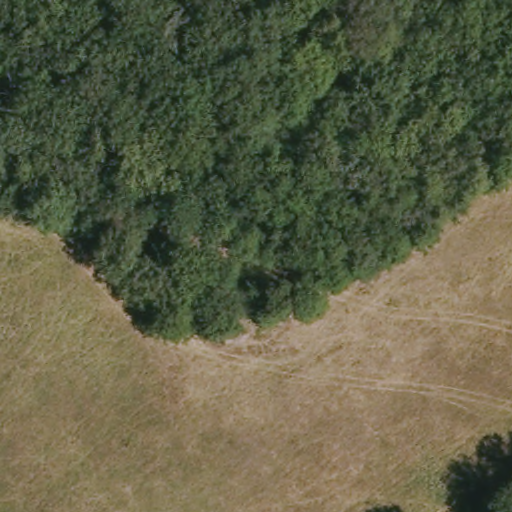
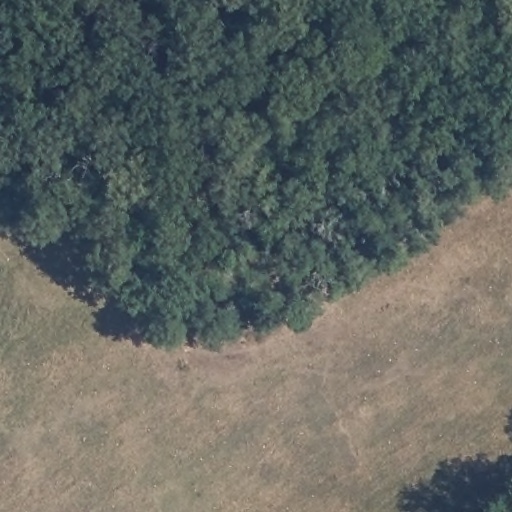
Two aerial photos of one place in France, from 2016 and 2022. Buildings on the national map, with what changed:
[]

